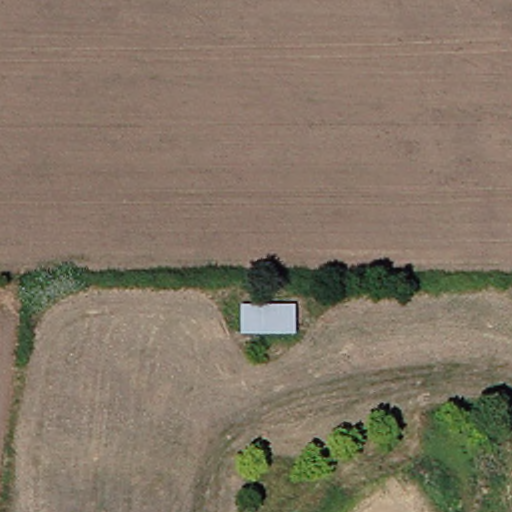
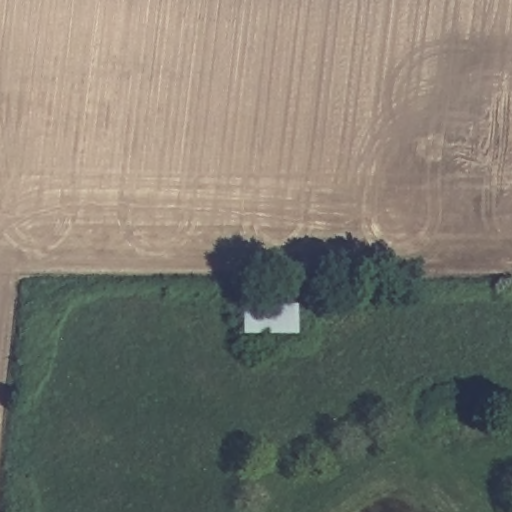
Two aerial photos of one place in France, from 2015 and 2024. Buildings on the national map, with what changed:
unchanged [(297,305),(297,336),(241,335),(239,306),(297,305)]

